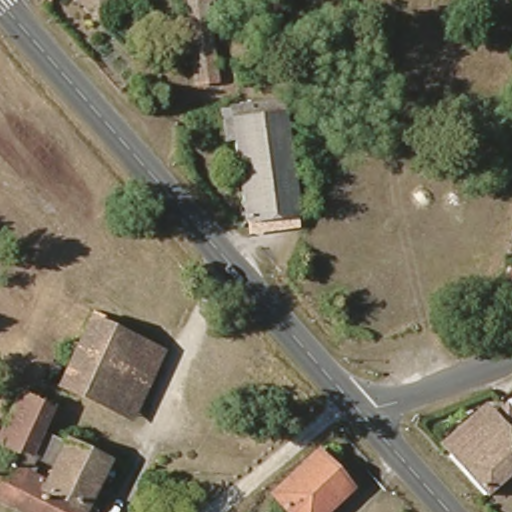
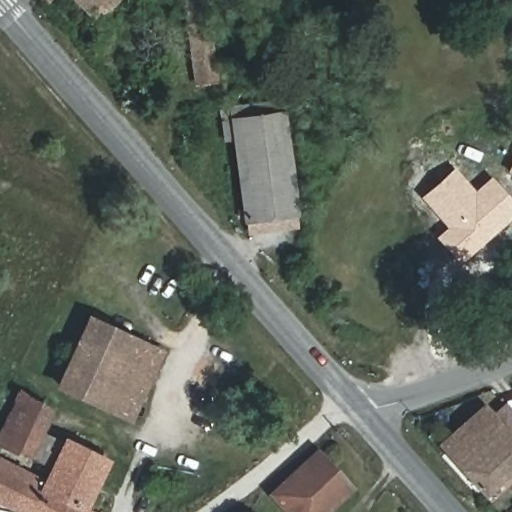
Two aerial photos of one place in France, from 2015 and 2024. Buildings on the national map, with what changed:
unchanged [(90,18),(73,0),(108,0),(90,18)]
unchanged [(217,81),(197,84),(184,0),(211,0),(212,2),(205,3),(217,81)]
unchanged [(284,11),(266,13),(264,0),(283,0),(284,11)]
unchanged [(287,106),(301,219),(250,225),(240,143),(230,144),(228,124),(238,122),(236,112),(287,106)]
new [(512,201),(512,217),(461,264),(436,238),(447,228),(419,197),(454,167),(476,191),(491,177),(512,201)]
unchanged [(511,172),(512,168),(512,172),(511,172)]
unchanged [(121,413),(59,385),(88,320),(89,321),(93,313),(101,317),(98,325),(151,350),(161,354),(132,418),(121,413)]
unchanged [(0,445),(0,443),(24,396),(44,406),(34,428),(20,455),(0,445)]
unchanged [(474,495),(440,456),(429,445),(474,405),(485,417),(496,407),(512,425),(512,461),(474,495)]
unchanged [(1,462),(0,461),(0,445),(20,455),(34,428),(69,446),(48,486),(1,462)]
unchanged [(109,467),(86,512),(45,491),(48,486),(69,446),(109,467)]
unchanged [(288,512),(272,494),(315,453),(349,489),(324,512),(288,512)]
unchanged [(86,512),(19,512),(0,503),(0,465),(1,462),(48,486),(45,491),(86,512)]

